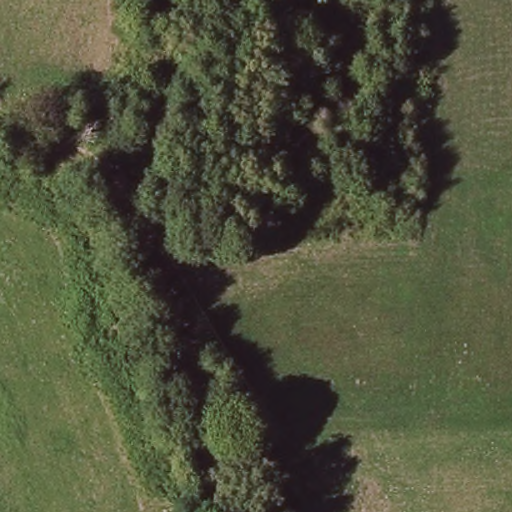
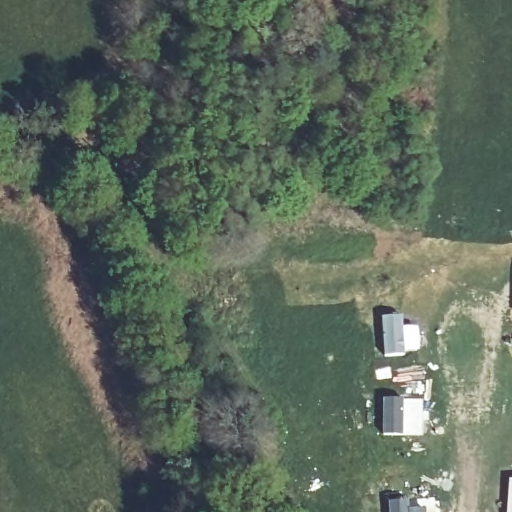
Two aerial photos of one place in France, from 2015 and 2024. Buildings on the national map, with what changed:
new [(402,316),(405,356),(382,357),(380,317),(402,316)]
new [(382,398),(424,399),(424,435),(382,436),(382,398)]
new [(512,478),(512,512),(505,512),(507,478),(512,478)]
new [(429,512),(388,512),(387,501),(409,499),(410,505),(428,504),(429,512)]

